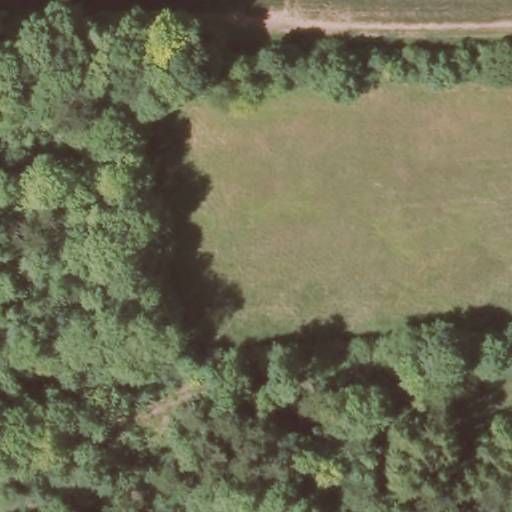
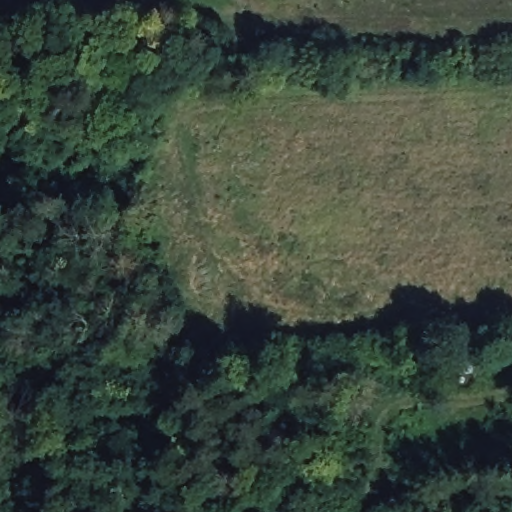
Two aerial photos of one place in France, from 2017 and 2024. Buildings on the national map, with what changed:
unchanged [(467,353),(469,370),(446,370),(443,355),(467,353)]

